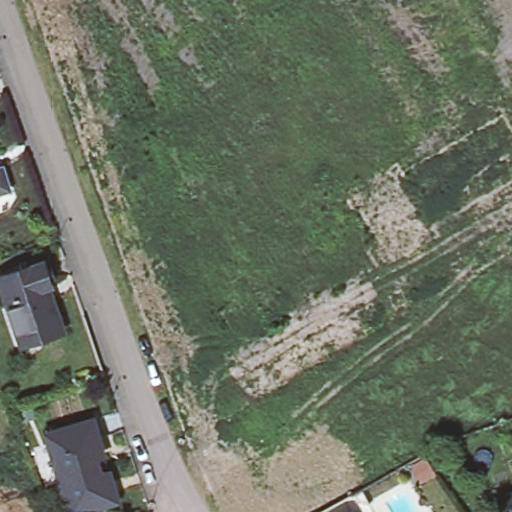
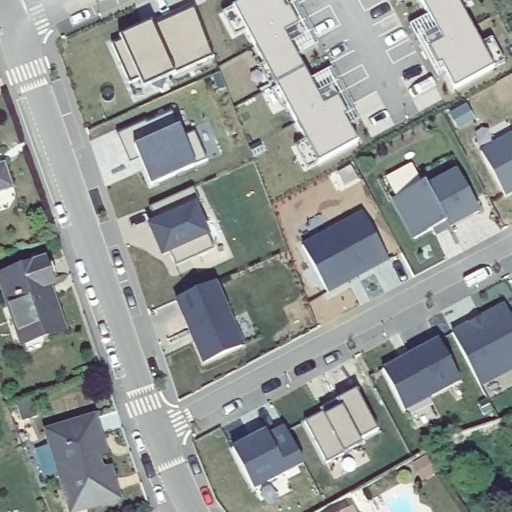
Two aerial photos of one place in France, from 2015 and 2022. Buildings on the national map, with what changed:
new [(279,0),(286,13),(289,11),(299,29),(285,36),(304,72),(276,88),(234,10),(252,0),(279,0)]
new [(291,47),(304,40),(301,35),(295,21),(289,11),(286,13),(281,2),(286,0),(291,0),(301,18),(308,32),(318,51),(299,61),(291,47)]
new [(394,0),(412,0),(398,7),(394,0)]
new [(419,0),(438,0),(423,8),(419,0)]
new [(454,91),(442,67),(439,69),(429,51),(443,44),(423,8),(438,0),(456,0),(494,70),(454,91)]
new [(110,39),(119,35),(156,18),(158,23),(194,7),(214,57),(176,73),(143,87),(138,74),(129,81),(110,39)]
new [(223,16),(234,10),(246,33),(236,39),(223,16)]
new [(427,61),(420,48),(409,29),(429,19),(437,32),(424,39),(426,44),(433,59),(439,69),(442,67),(447,77),(439,82),(427,61)]
new [(494,70),(482,46),(493,40),(505,64),(494,70)]
new [(324,108),(339,101),(348,119),(344,120),(358,144),(319,166),(276,88),(304,72),(324,108)]
new [(348,119),(342,108),(339,101),(337,101),(334,95),(331,90),(318,97),(311,83),(330,73),(340,92),(348,105),(359,125),(351,130),(344,120),(348,119)]
new [(173,110),(176,123),(181,122),(185,133),(196,131),(207,157),(153,182),(141,154),(130,159),(118,132),(173,110)]
demolished [(393,161),(399,170),(500,112),(512,133),(512,179),(431,226),(436,233),(384,264),(341,191),(393,161)]
new [(512,190),(507,193),(481,148),(512,134),(512,190)]
new [(308,172),(295,148),(306,142),(319,166),(308,172)]
unchanged [(4,163),(11,184),(0,189),(0,164),(4,163)]
new [(391,200),(425,183),(456,170),(479,214),(434,237),(431,232),(413,242),(391,200)]
new [(196,209),(215,252),(176,269),(167,247),(159,251),(150,228),(157,225),(151,210),(194,190),(201,207),(196,209)]
new [(364,210),(389,257),(329,290),(304,241),(364,210)]
demolished [(463,252),(512,223),(512,248),(474,270),(454,282),(443,263),(463,252)]
new [(167,247),(171,255),(163,258),(159,251),(167,247)]
unchanged [(13,333),(0,296),(0,275),(6,273),(4,267),(36,255),(45,281),(40,282),(55,326),(34,334),(15,340),(13,333)]
new [(175,301),(217,281),(246,345),(203,365),(175,301)]
demolished [(409,300),(396,308),(389,295),(402,287),(409,300)]
demolished [(261,394),(249,372),(380,296),(393,318),(261,394)]
new [(504,303),(512,319),(512,370),(479,384),(453,329),(504,303)]
new [(381,368),(439,340),(459,383),(404,411),(381,368)]
new [(306,422),(323,414),(321,410),(338,401),(357,391),(376,430),(359,438),(362,445),(343,455),(327,463),(306,422)]
demolished [(37,428),(84,414),(100,468),(53,482),(37,428)]
new [(44,429),(98,414),(123,499),(85,512),(69,512),(44,429)]
new [(231,448),(266,431),(284,425),(303,466),(252,491),(231,448)]
demolished [(141,509),(143,512),(135,512),(141,509)]

